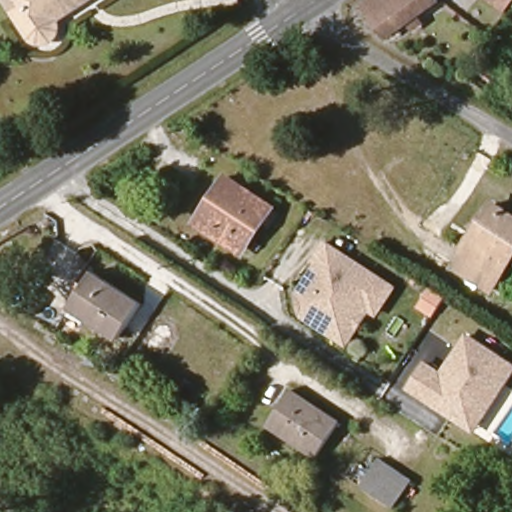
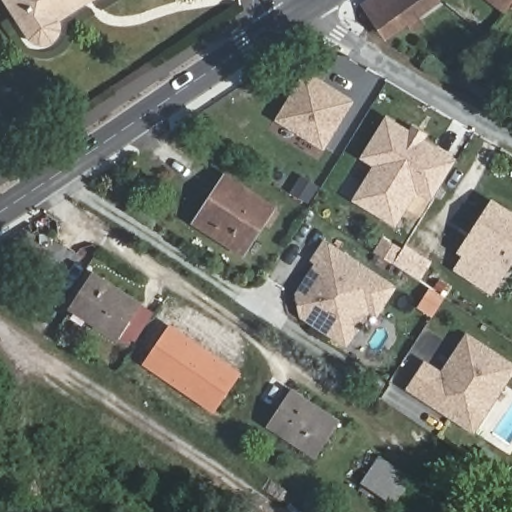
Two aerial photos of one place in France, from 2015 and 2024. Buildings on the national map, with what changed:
unchanged [(65,19),(66,21),(67,24),(67,27),(66,32),(64,36),(61,42),(57,45),(52,49),(45,47),(38,42),(34,37),(29,33),(8,0),(92,0),(65,19)]
unchanged [(363,2),(366,0),(440,0),(388,37),(384,35),(363,2)]
unchanged [(490,0),(512,0),(504,10),(490,0)]
new [(311,72),(354,99),(337,126),(334,124),(330,130),(334,131),(322,151),(278,124),(311,72)]
new [(392,159),(371,146),(389,118),(413,132),(410,137),(419,143),(422,138),(456,159),(431,196),(417,188),(396,222),(365,203),(392,159)]
unchanged [(210,232),(198,224),(229,178),(272,207),(248,244),(244,252),(210,232)]
unchanged [(512,263),(492,292),(462,272),(469,260),(461,255),(493,208),(512,220),(512,263)]
unchanged [(341,343),(334,338),(303,318),(297,314),(294,294),(297,289),(315,262),(310,259),(321,242),(389,287),(372,313),(358,304),(346,306),(359,315),(341,343)]
unchanged [(138,302),(118,335),(73,306),(93,273),(138,302)]
new [(143,363),(170,324),(241,372),(214,412),(143,363)]
unchanged [(409,385),(425,361),(442,372),(467,333),(512,363),(512,367),(499,387),(474,427),(451,412),(409,385)]
unchanged [(336,425),(317,457),(270,427),(291,397),(336,425)]
unchanged [(411,484),(397,507),(364,486),(379,462),(411,484)]

